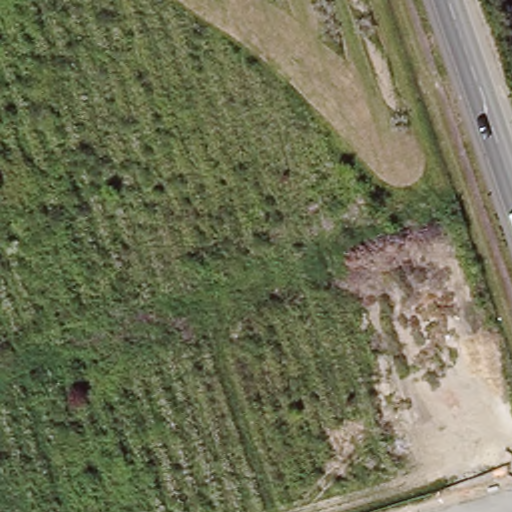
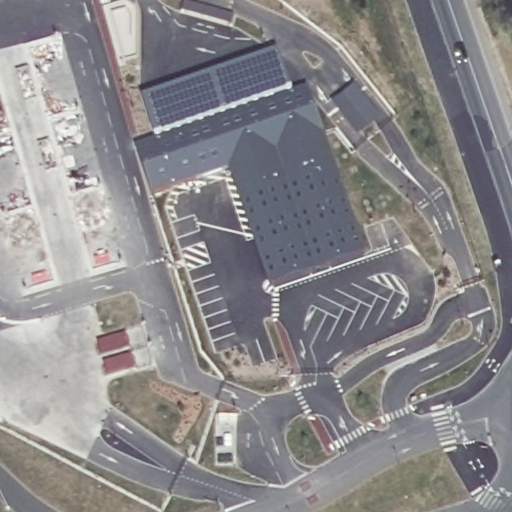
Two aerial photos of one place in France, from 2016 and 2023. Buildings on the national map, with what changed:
new [(184,2),(234,16),(232,26),(182,12),(184,2)]
new [(277,51),(292,95),(157,143),(141,98),(277,51)]
new [(157,143),(292,95),(307,90),(363,252),(272,284),(230,166),(152,193),(137,149),(157,143)]
new [(355,90),(382,128),(370,136),(344,99),(355,90)]

